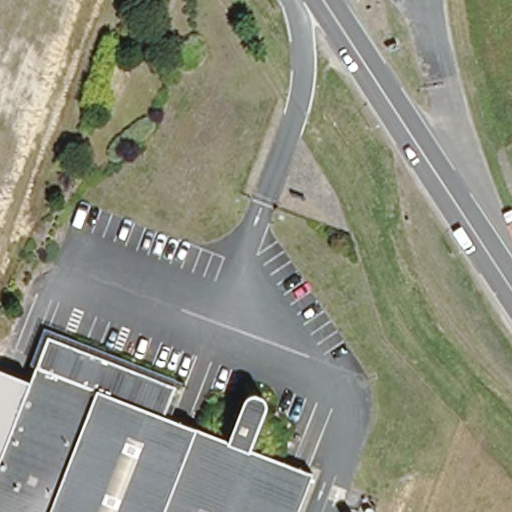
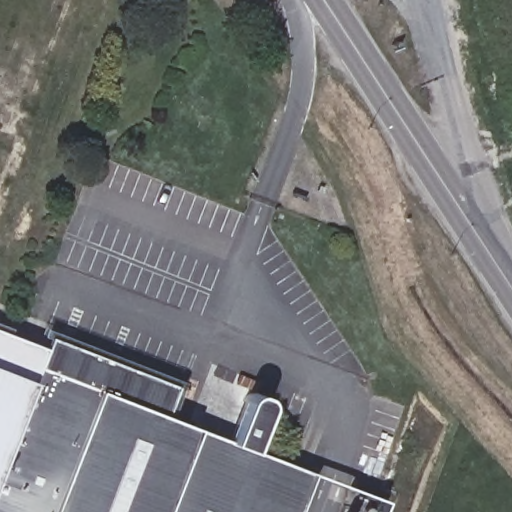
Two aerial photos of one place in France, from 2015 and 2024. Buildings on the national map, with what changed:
unchanged [(46,329),(179,378),(166,411),(229,435),(240,402),(243,397),(247,394),(252,392),(258,393),(262,396),(265,400),(267,405),(266,409),(254,445),(316,469),(300,512),(0,512),(0,458),(29,378),(46,329)]
new [(29,378),(0,368),(0,330),(40,346),(29,378)]
unchanged [(29,378),(0,458),(0,368),(29,378)]

